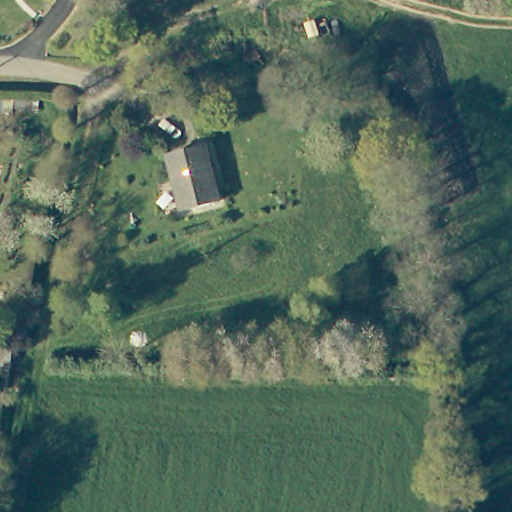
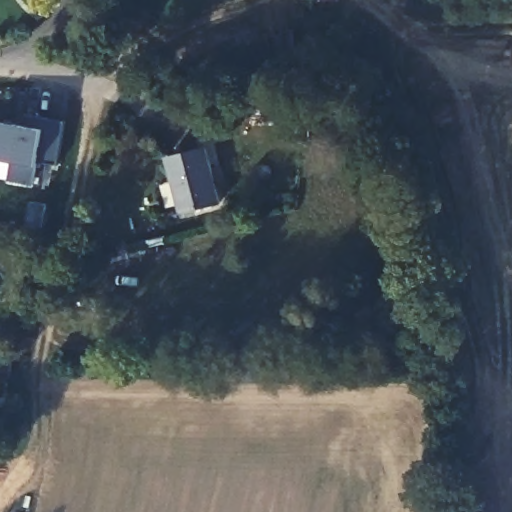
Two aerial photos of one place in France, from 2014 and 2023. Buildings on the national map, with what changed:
new [(57,163),(38,159),(36,165),(33,184),(9,180),(12,161),(0,158),(0,120),(23,125),(28,114),(64,121),(57,163)]
unchanged [(219,204),(183,212),(171,155),(206,148),(219,204)]

